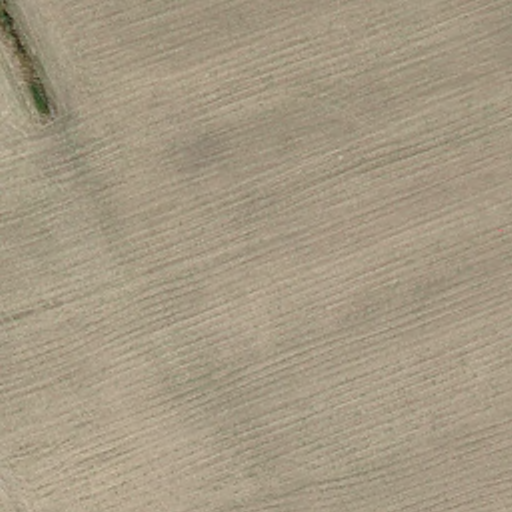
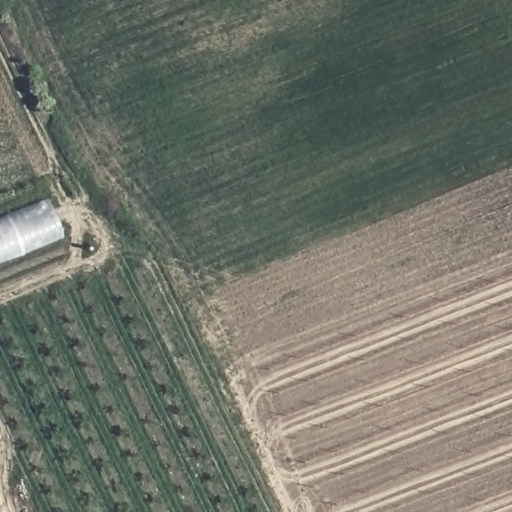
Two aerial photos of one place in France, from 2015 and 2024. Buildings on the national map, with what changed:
new [(62,237),(0,262),(0,218),(45,199),(62,237)]

